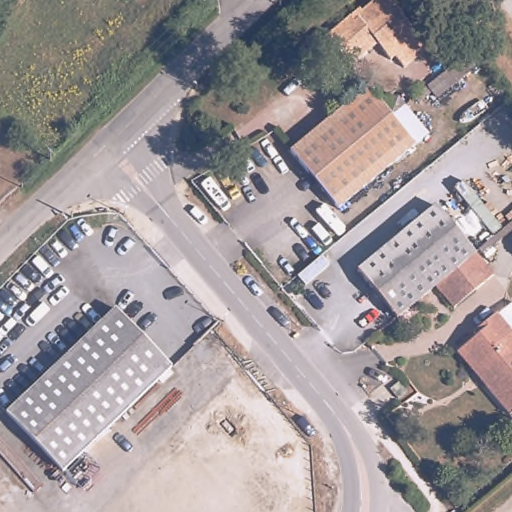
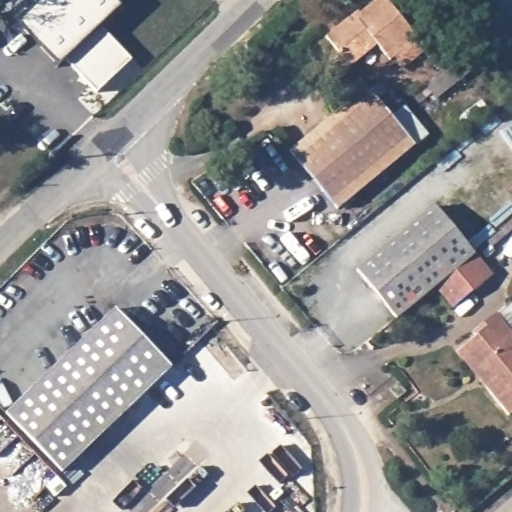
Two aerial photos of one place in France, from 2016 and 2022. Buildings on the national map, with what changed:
new [(42,0),(114,0),(122,8),(101,28),(131,60),(97,94),(66,62),(59,68),(16,24),(42,0)]
unchanged [(432,53),(409,73),(400,62),(395,66),(382,50),(355,72),(330,42),(354,22),(364,14),(367,16),(387,0),(388,0),(432,53)]
unchanged [(290,154),(367,92),(390,121),(403,111),(427,140),(339,213),(290,154)]
unchanged [(395,318),(357,271),(434,206),(474,253),(493,275),(453,307),(435,285),(395,318)]
unchanged [(492,324),(506,312),(512,319),(512,348),(492,324)]
unchanged [(10,417),(120,313),(176,372),(67,477),(10,417)]
unchanged [(504,424),(480,395),(452,362),(456,358),(471,346),(468,341),(491,323),(492,324),(512,348),(512,418),(504,424)]
unchanged [(389,388),(397,381),(405,391),(398,398),(389,388)]

